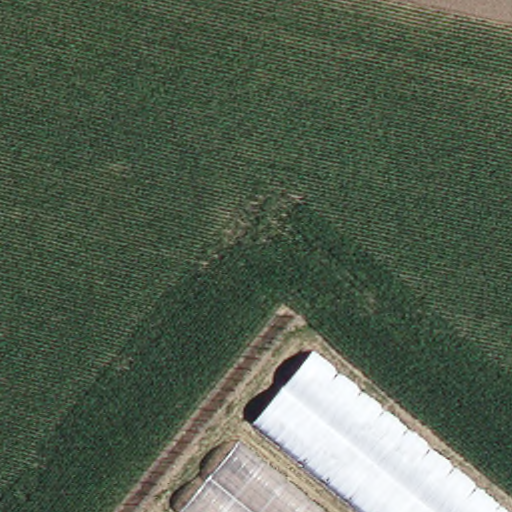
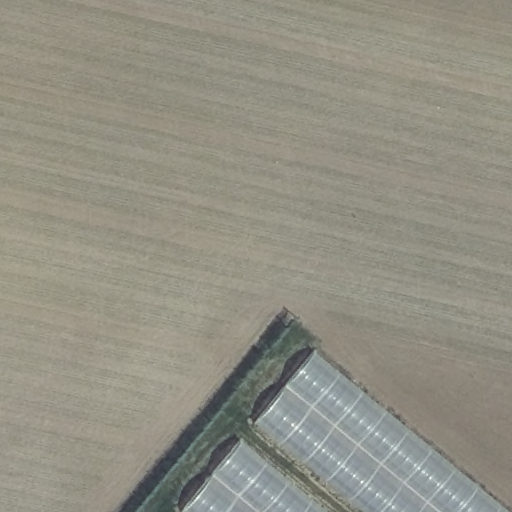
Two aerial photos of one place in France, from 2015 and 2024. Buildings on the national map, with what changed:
unchanged [(306,359),(498,512),(362,512),(254,422),(306,359)]
unchanged [(235,450),(312,512),(184,512),(182,510),(235,450)]

